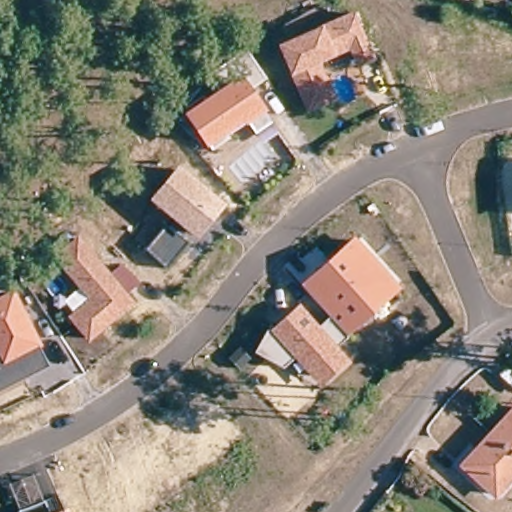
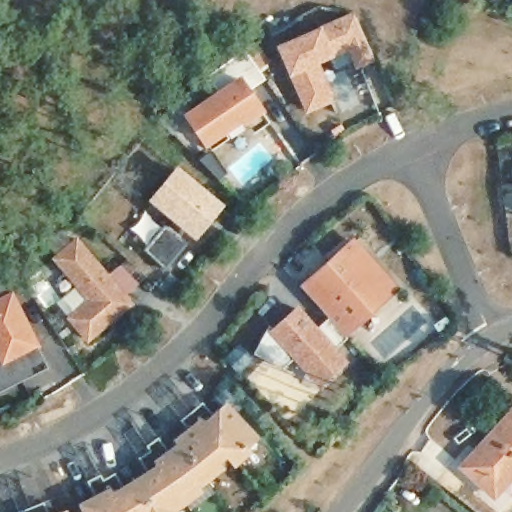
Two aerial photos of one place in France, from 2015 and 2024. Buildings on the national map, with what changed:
unchanged [(354,11),(376,57),(355,67),(348,50),(342,53),(346,64),(326,72),(336,100),(306,113),(289,76),(277,46),(321,25),(354,11)]
unchanged [(266,111),(205,150),(180,112),(241,75),(266,111)]
unchanged [(225,204),(196,240),(184,231),(178,239),(185,245),(165,271),(145,251),(170,219),(149,202),(177,164),(225,204)]
unchanged [(401,288),(337,347),(349,361),(319,387),(293,357),(283,367),(253,352),(269,322),(275,327),(302,303),(319,324),(329,317),(303,285),(355,237),(401,288)]
unchanged [(67,318),(89,298),(60,264),(84,243),(135,302),(89,342),(67,318)]
unchanged [(14,289),(44,344),(38,349),(47,367),(0,391),(0,295),(14,289)]
new [(260,434),(247,444),(253,452),(234,466),(228,457),(221,462),(226,470),(199,487),(202,492),(176,508),(179,512),(77,512),(82,510),(78,503),(93,493),(87,481),(100,473),(103,479),(116,472),(123,483),(146,469),(139,457),(150,449),(147,443),(159,435),(167,448),(174,443),(171,438),(186,426),(181,420),(204,401),(212,413),(219,407),(227,400),(260,434)]
unchanged [(506,419),(512,412),(512,476),(489,500),(463,477),(457,472),(465,463),(506,419)]
unchanged [(70,512),(59,512),(68,508),(70,512)]

